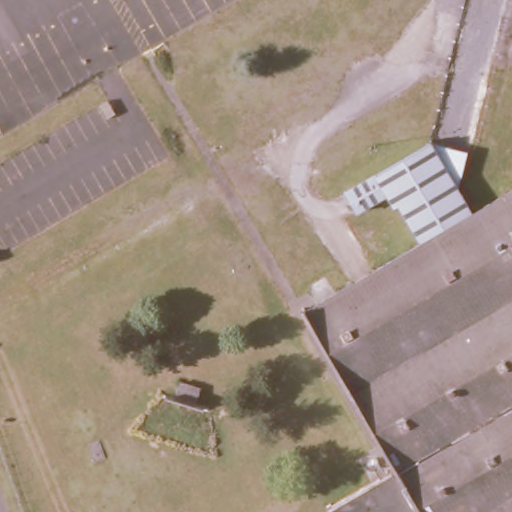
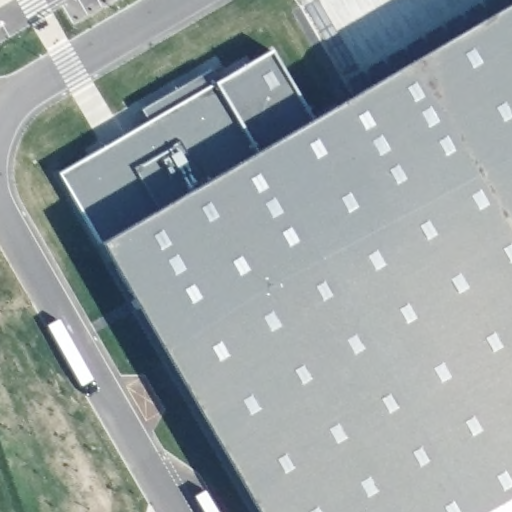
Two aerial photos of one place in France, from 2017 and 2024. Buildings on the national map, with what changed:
demolished [(459,172),(432,127),(465,0),(503,0),(459,172)]
new [(59,174),(147,122),(140,110),(211,70),(217,81),(269,51),(310,122),(512,5),(512,512),(255,512),(100,245),(59,174)]
demolished [(475,199),(424,228),(402,190),(397,194),(388,179),(357,197),(347,177),(432,127),(459,172),(475,199)]
demolished [(512,177),(512,282),(351,376),(305,297),(424,228),(475,199),(512,177)]
demolished [(390,443),(351,376),(512,282),(512,512),(430,512),(427,508),(390,443)]
demolished [(351,376),(390,443),(318,485),(280,418),(351,376)]
demolished [(390,443),(427,508),(430,512),(334,512),(318,485),(390,443)]

